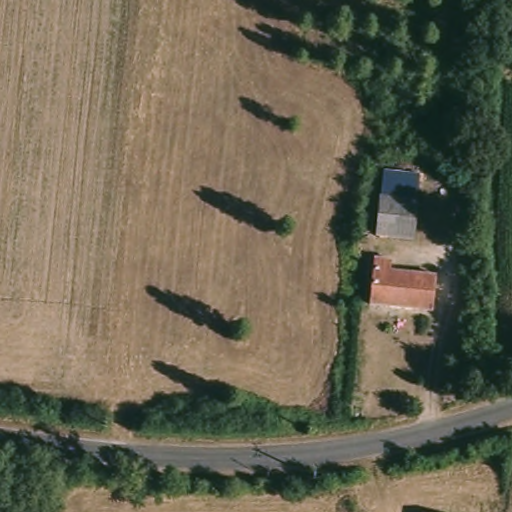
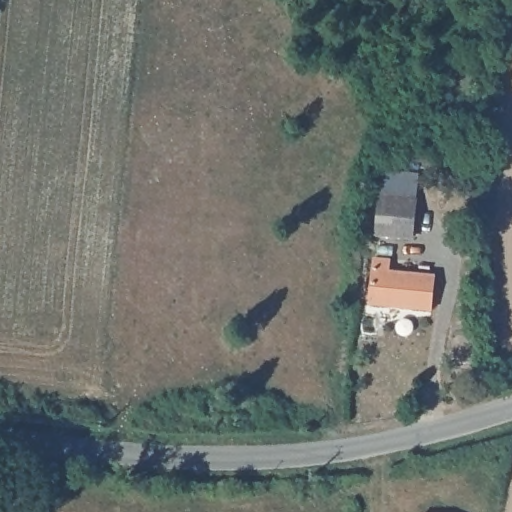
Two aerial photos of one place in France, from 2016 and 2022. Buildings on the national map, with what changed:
unchanged [(417,168),(419,241),(384,242),(382,168),(417,168)]
unchanged [(383,262),(384,271),(431,271),(431,307),(372,308),(372,263),(383,262)]

